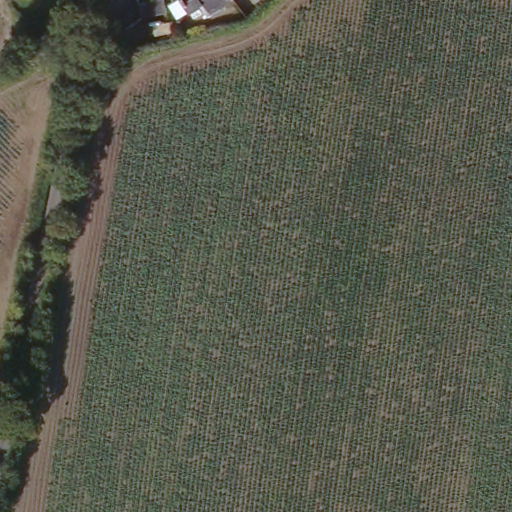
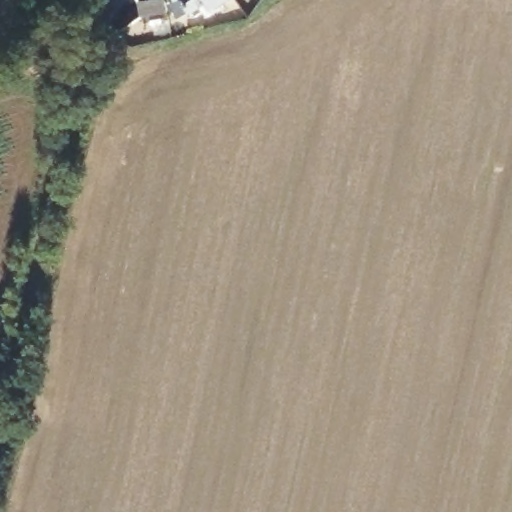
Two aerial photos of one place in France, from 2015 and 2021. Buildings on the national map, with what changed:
unchanged [(206,6),(189,16),(179,0),(233,0),(233,1),(214,15),(206,6)]
unchanged [(139,24),(138,10),(162,8),(163,22),(139,24)]

